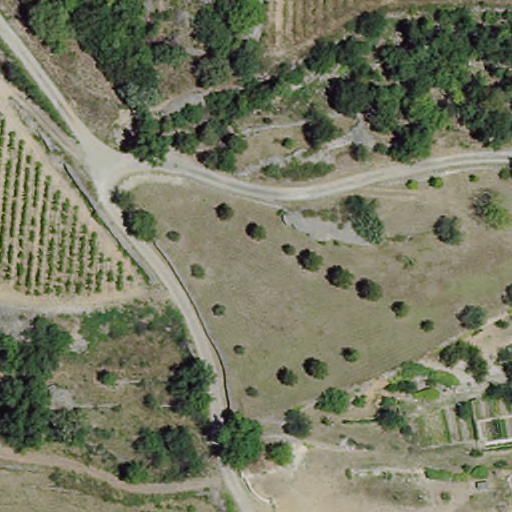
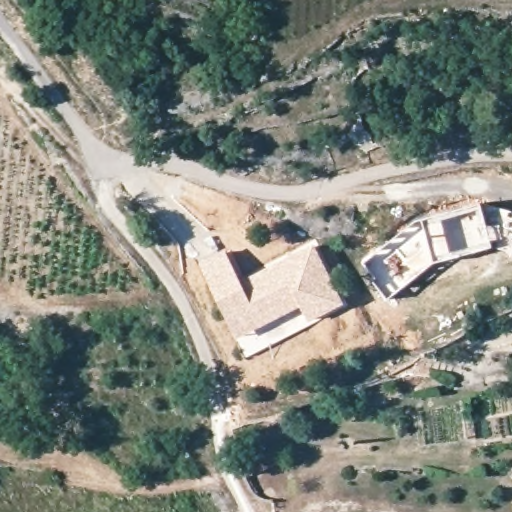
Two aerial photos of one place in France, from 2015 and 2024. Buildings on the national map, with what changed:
new [(414,222),(423,219),(482,202),(484,207),(490,206),(501,207),(512,211),(512,253),(493,248),(435,263),(387,300),(361,262),(414,222)]
new [(225,248),(242,278),(314,241),(345,303),(308,324),(301,309),(237,338),(198,260),(225,248)]

